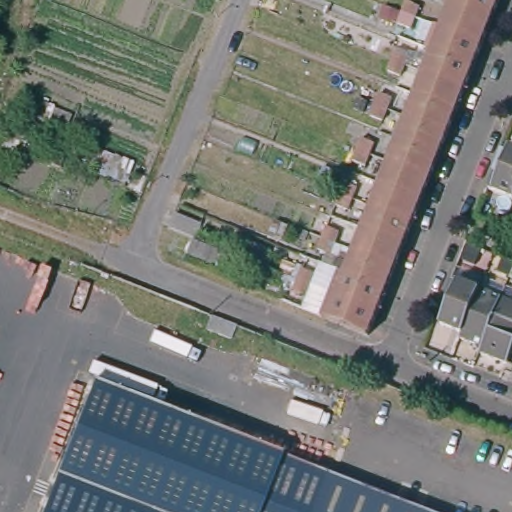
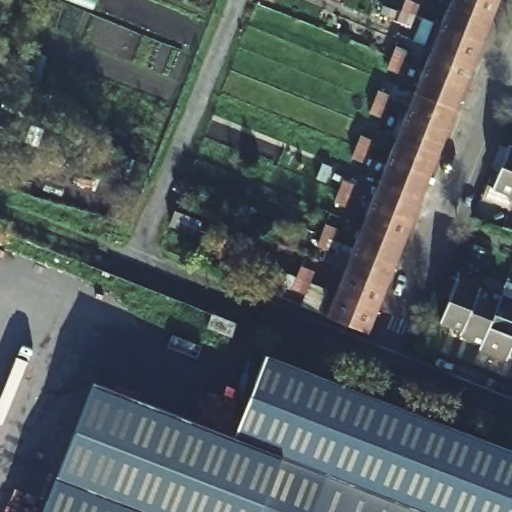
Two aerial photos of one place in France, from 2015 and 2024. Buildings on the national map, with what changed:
unchanged [(495,21),(453,5),(447,3),(449,0),(504,0),(495,21)]
unchanged [(397,21),(401,12),(405,2),(420,8),(416,18),(412,28),(397,21)]
unchanged [(495,21),(486,43),(483,42),(445,27),(453,5),(495,21)]
unchanged [(477,66),(475,65),(436,50),(428,47),(438,24),(445,27),(483,42),(486,43),(477,66)]
unchanged [(385,69),(390,59),(394,48),(410,54),(405,65),(401,76),(385,69)]
unchanged [(469,88),(427,71),(436,50),(475,65),(477,66),(469,88)]
unchanged [(427,71),(469,88),(460,110),(418,94),(427,71)]
unchanged [(367,114),(372,103),(376,93),(390,98),(385,109),(381,119),(367,114)]
unchanged [(460,110),(451,133),(410,116),(418,94),(460,110)]
unchanged [(443,154),(440,153),(401,138),(410,116),(451,133),(443,154)]
unchanged [(350,157),(354,148),(357,138),(372,144),(368,153),(365,163),(350,157)]
unchanged [(434,177),(392,161),(401,138),(440,153),(443,154),(434,177)]
unchanged [(512,147),(512,194),(510,198),(485,188),(493,166),(499,168),(508,146),(512,147)]
unchanged [(383,183),(392,161),(434,177),(425,199),(383,183)]
unchanged [(332,203),(336,191),(341,180),(355,186),(351,197),(347,208),(332,203)]
unchanged [(416,221),(375,205),(383,183),(425,199),(416,221)]
unchanged [(510,198),(512,194),(512,199),(510,198)]
unchanged [(375,205),(416,221),(408,243),(366,227),(375,205)]
unchanged [(175,211),(199,221),(194,233),(170,223),(175,211)]
unchanged [(315,246),(320,236),(323,225),(338,231),(334,242),(330,252),(315,246)]
unchanged [(408,243),(399,266),(396,264),(357,249),(366,227),(408,243)]
unchanged [(390,287),(350,271),(357,249),(396,264),(399,266),(390,287)]
unchanged [(293,290),(298,278),(302,266),(316,272),(312,284),(307,296),(293,290)]
unchanged [(381,309),(335,291),(343,268),(350,271),(390,287),(381,309)]
unchanged [(481,288),(465,331),(443,322),(452,298),(448,296),(455,277),(481,288)]
unchanged [(503,296),(484,344),(462,335),(465,331),(481,288),(503,296)]
unchanged [(381,309),(372,334),(325,315),(335,291),(381,309)]
unchanged [(512,299),(512,356),(510,361),(482,350),(484,344),(503,296),(512,299)]
new [(512,451),(512,512),(427,512),(325,472),(275,454),(233,438),(265,355),(512,451)]
unchanged [(40,512),(90,383),(275,454),(325,472),(310,512),(40,512)]
unchanged [(427,512),(310,512),(325,472),(427,512)]

